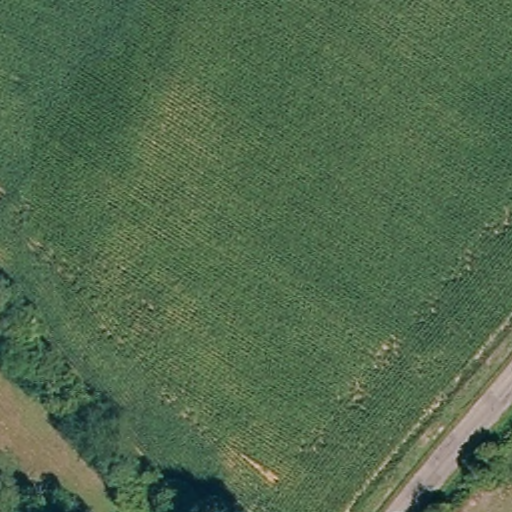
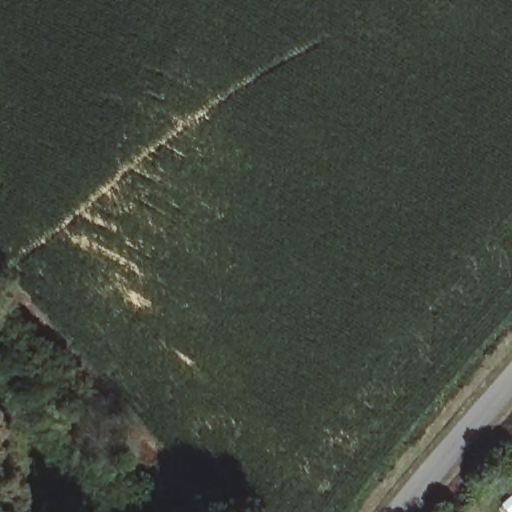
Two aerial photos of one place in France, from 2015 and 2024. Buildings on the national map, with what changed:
[]

